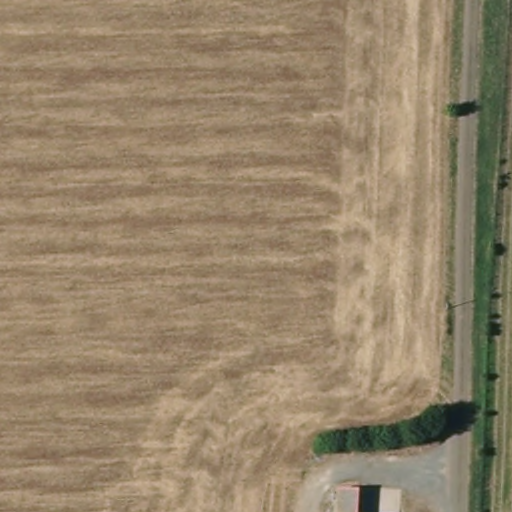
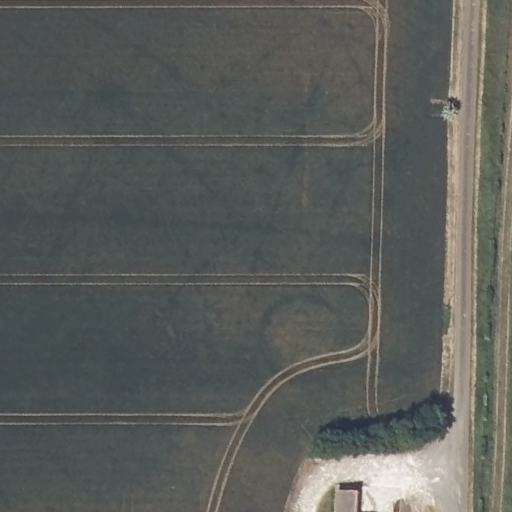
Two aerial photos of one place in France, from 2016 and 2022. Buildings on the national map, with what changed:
unchanged [(361,489),(360,512),(331,512),(333,488),(361,489)]

